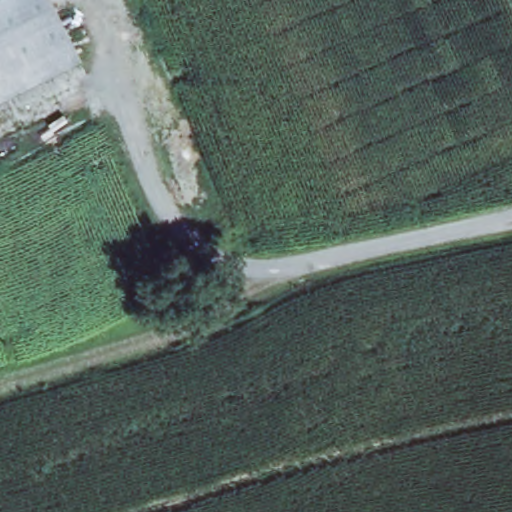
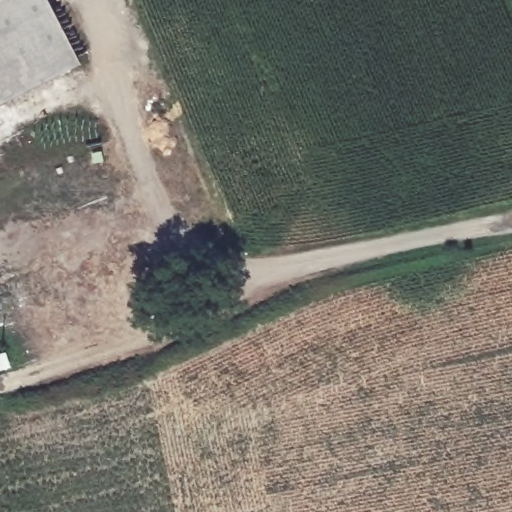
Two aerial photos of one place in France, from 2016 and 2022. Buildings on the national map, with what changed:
unchanged [(76,63),(0,102),(0,0),(44,0),(76,63)]

